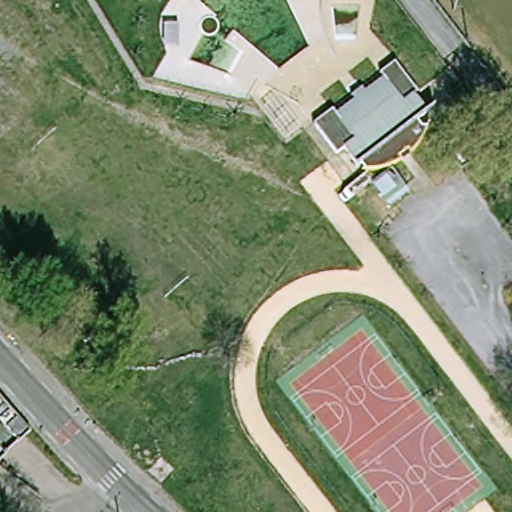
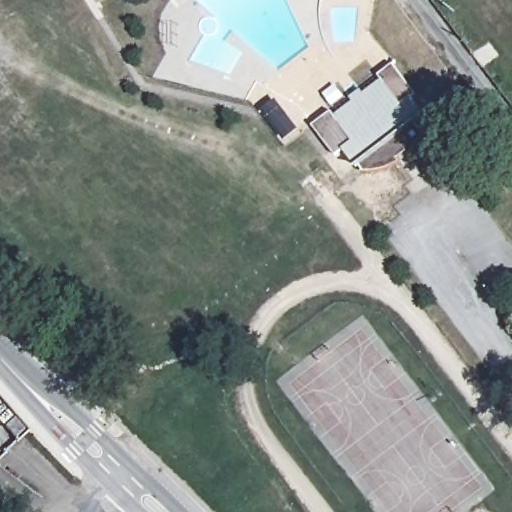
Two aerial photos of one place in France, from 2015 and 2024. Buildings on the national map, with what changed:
unchanged [(353,94),(364,85),(369,91),(388,76),(383,70),(397,60),(416,83),(412,88),(429,109),(424,113),(432,123),(430,128),(426,136),(419,145),(411,152),(403,159),(399,161),(390,166),(380,169),(370,171),(360,172),(355,166),(343,149),(336,154),(312,124),(332,108),(339,115),(354,103),(358,100),(353,94)]

